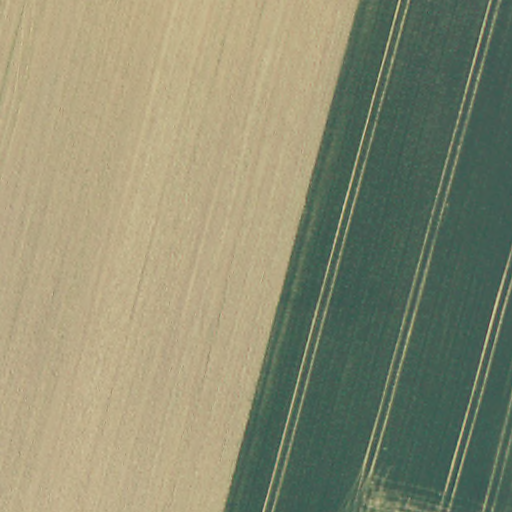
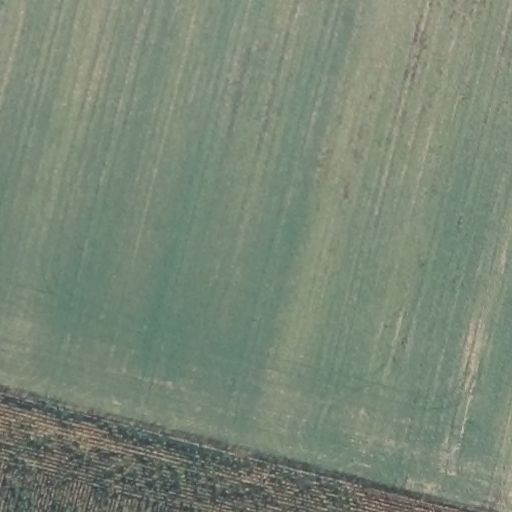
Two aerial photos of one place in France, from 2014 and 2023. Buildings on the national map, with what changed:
[]

